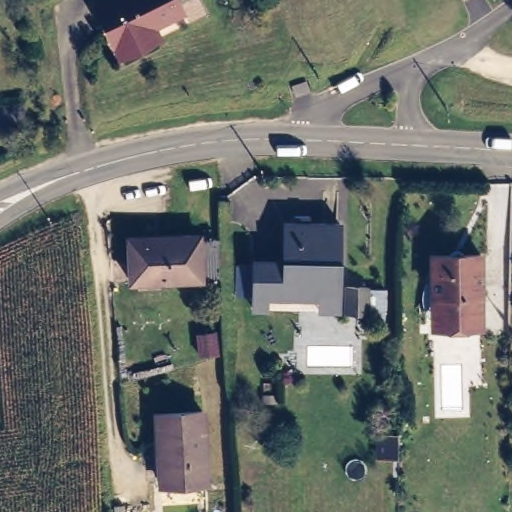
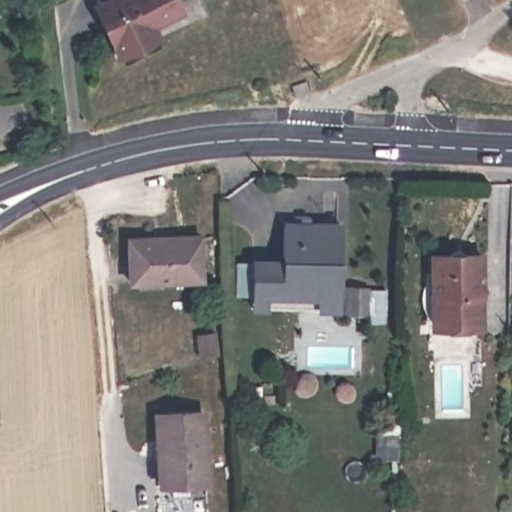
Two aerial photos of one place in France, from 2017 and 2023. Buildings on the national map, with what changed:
unchanged [(117,51),(99,11),(120,0),(180,0),(186,11),(157,26),(163,38),(121,59),(117,51)]
unchanged [(253,257),(284,257),(282,225),(287,225),(287,220),(312,219),(312,224),(342,222),(342,312),(319,312),(319,307),(269,307),(269,312),(252,312),(253,257)]
unchanged [(201,237),(202,282),(132,284),(132,239),(201,237)]
unchanged [(481,259),(482,288),(485,291),(481,297),(480,330),(441,330),(442,298),(434,297),(434,258),(481,259)]
unchanged [(346,287),(379,287),(378,317),(347,317),(346,287)]
unchanged [(203,417),(205,487),(160,487),(157,417),(203,417)]

